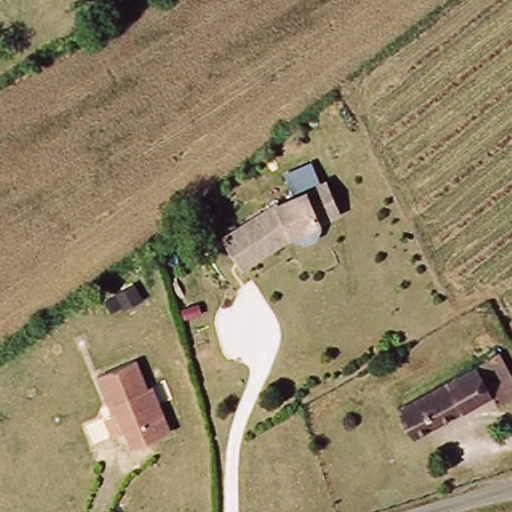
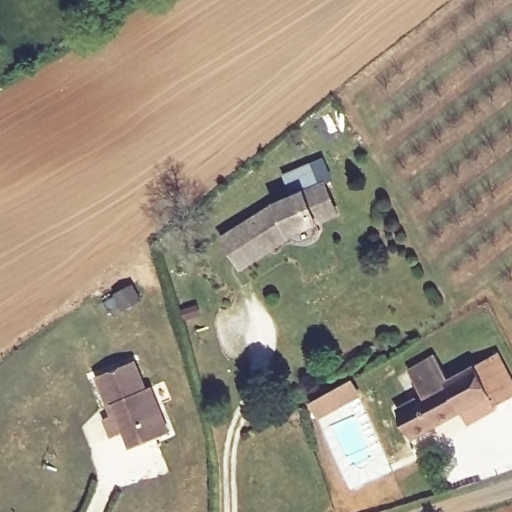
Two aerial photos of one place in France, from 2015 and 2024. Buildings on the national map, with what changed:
unchanged [(242,264),(225,234),(279,201),(326,179),(339,210),(320,218),(322,225),(317,236),(305,240),(297,238),(292,232),(242,264)]
new [(435,353),(450,382),(422,397),(407,370),(435,353)]
unchanged [(497,355),(512,381),(512,404),(499,412),(489,395),(474,368),(497,355)]
unchanged [(141,363),(151,391),(157,389),(175,435),(139,448),(120,404),(115,407),(103,378),(141,363)]
unchanged [(489,395),(414,441),(395,411),(474,368),(489,395)]

